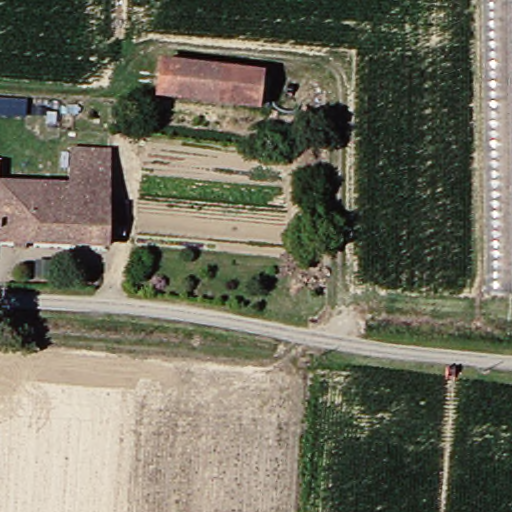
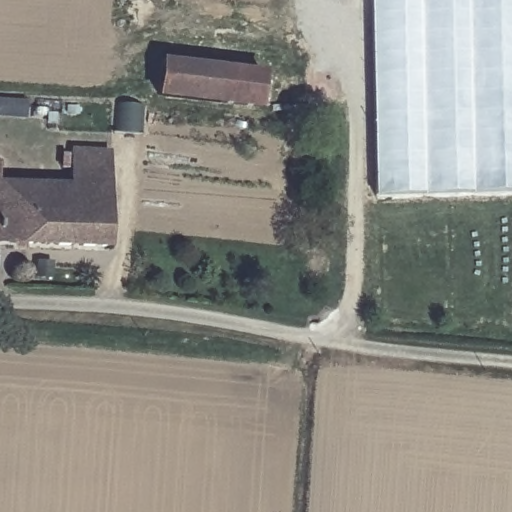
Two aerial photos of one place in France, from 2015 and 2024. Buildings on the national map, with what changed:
new [(371,0),(512,0),(512,192),(375,195),(371,0)]
demolished [(490,291),(489,0),(512,0),(512,293),(490,291)]
unchanged [(264,70),(261,105),(165,95),(168,61),(264,70)]
unchanged [(93,243),(0,241),(0,164),(1,164),(1,180),(64,181),(65,150),(114,150),(112,189),(93,188),(93,243)]
unchanged [(111,244),(93,243),(93,188),(112,189),(111,244)]

